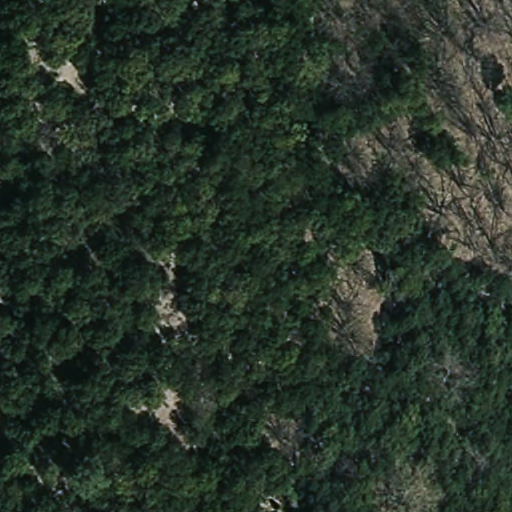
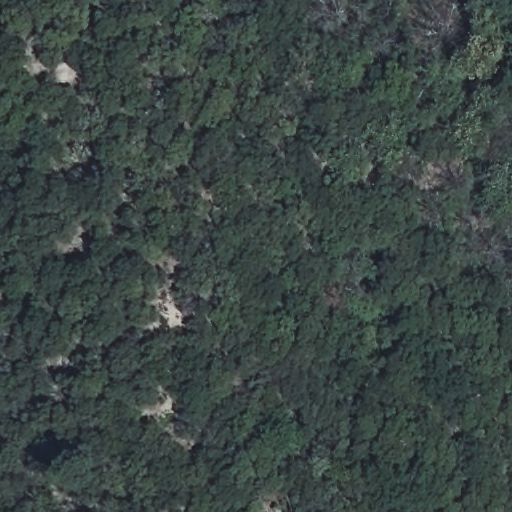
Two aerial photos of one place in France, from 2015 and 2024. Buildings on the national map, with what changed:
unchanged [(243,504),(238,488),(234,477),(272,463),(283,492),(284,494),(243,504)]
unchanged [(243,504),(284,494),(290,512),(246,512),(243,504)]

